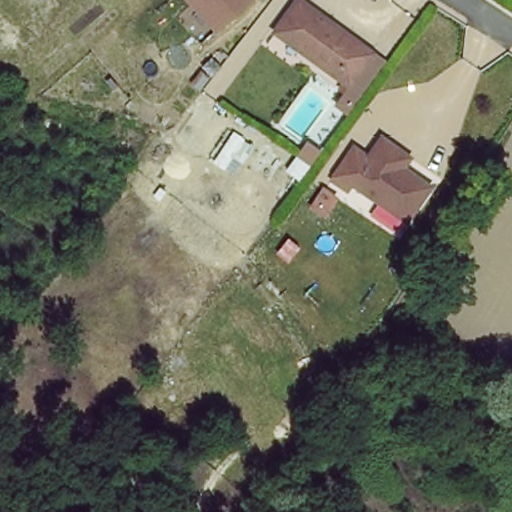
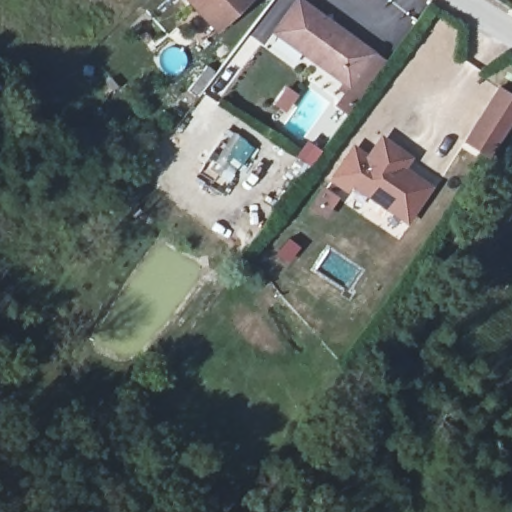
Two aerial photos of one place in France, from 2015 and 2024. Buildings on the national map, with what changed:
unchanged [(214,35),(182,0),(255,0),(214,35)]
unchanged [(346,83),(304,52),(272,30),(275,26),(293,0),(298,0),(370,51),(346,83)]
unchanged [(370,51),(386,64),(348,116),(332,105),(346,83),(370,51)]
new [(497,85),(512,94),(512,123),(490,157),(462,140),(497,85)]
unchanged [(418,199),(405,218),(351,179),(345,189),(329,178),(351,147),(366,157),(380,137),(399,150),(408,156),(402,166),(416,176),(429,185),(418,199)]

